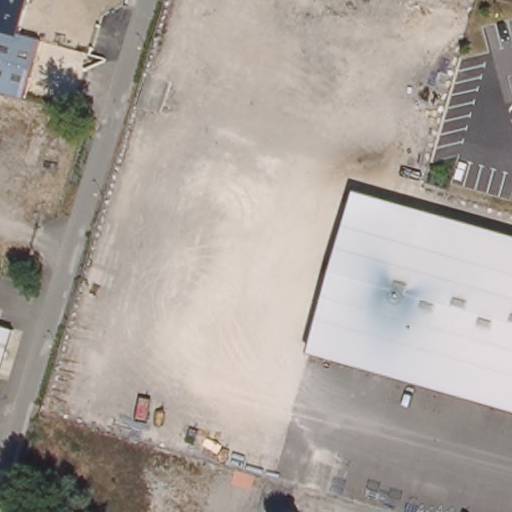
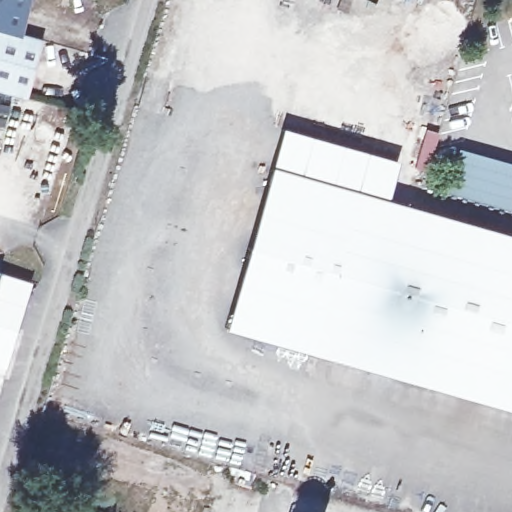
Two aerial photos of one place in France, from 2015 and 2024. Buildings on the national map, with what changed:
new [(21,26),(0,19),(0,0),(28,0),(21,26)]
unchanged [(43,32),(23,96),(8,91),(0,88),(0,19),(43,32)]
new [(310,355),(225,325),(286,125),(394,157),(384,194),(355,186),(314,341),(310,355)]
new [(512,202),(509,211),(442,191),(454,149),(512,163),(512,202)]
unchanged [(355,186),(384,194),(512,236),(512,396),(314,341),(355,186)]
unchanged [(14,326),(0,372),(0,321),(14,326)]
new [(512,410),(310,355),(314,341),(512,396),(512,410)]

